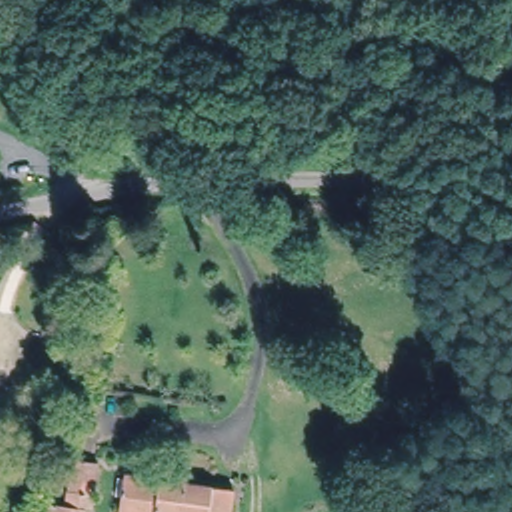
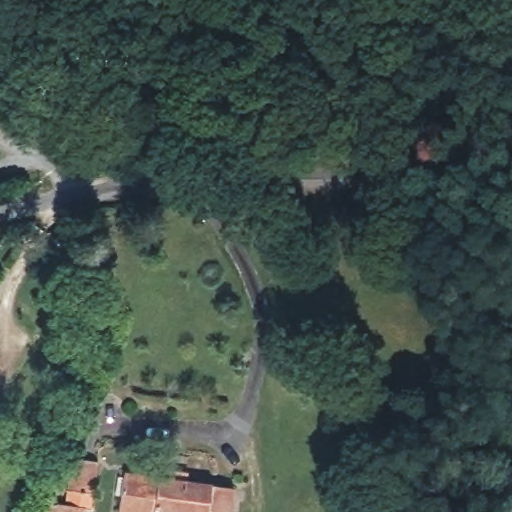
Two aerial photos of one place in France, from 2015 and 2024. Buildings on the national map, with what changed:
unchanged [(72,457),(97,460),(93,504),(82,503),(81,512),(50,512),(51,501),(69,503),(72,457)]
unchanged [(157,476),(156,479),(235,489),(231,512),(121,512),(127,473),(157,476)]

